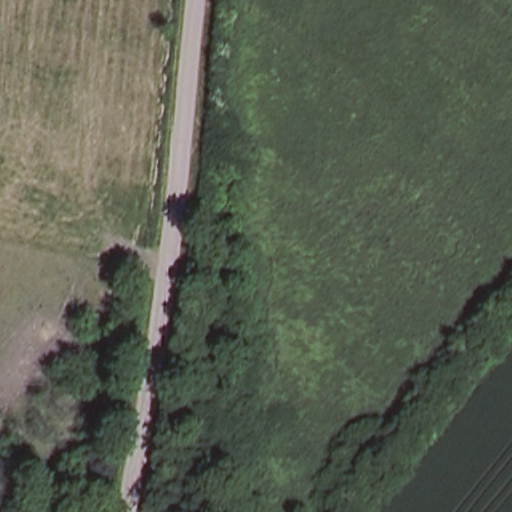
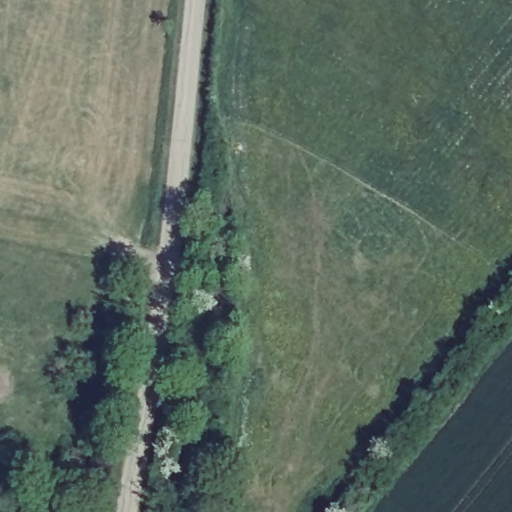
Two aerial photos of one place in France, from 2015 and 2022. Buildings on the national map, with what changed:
[]

